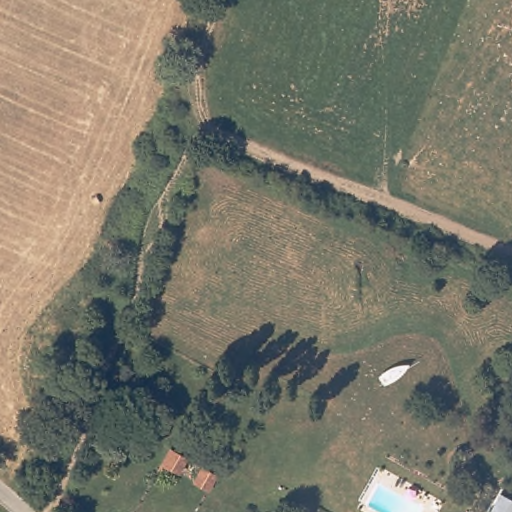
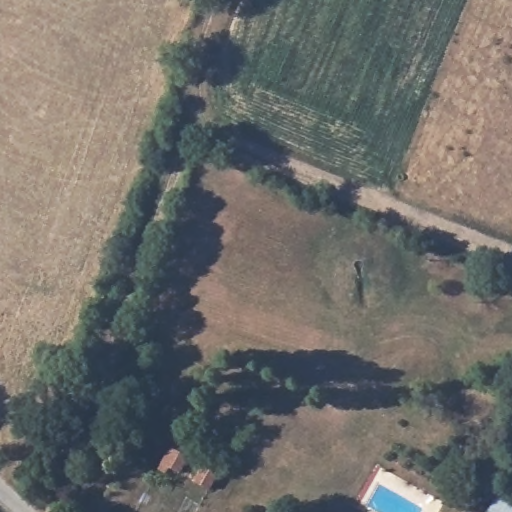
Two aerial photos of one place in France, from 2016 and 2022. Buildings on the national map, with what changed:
unchanged [(168,449),(186,459),(178,474),(166,469),(163,473),(157,470),(168,449)]
unchanged [(216,475),(208,490),(193,482),(202,467),(216,475)]
unchanged [(512,512),(486,512),(495,495),(512,505),(512,512)]

